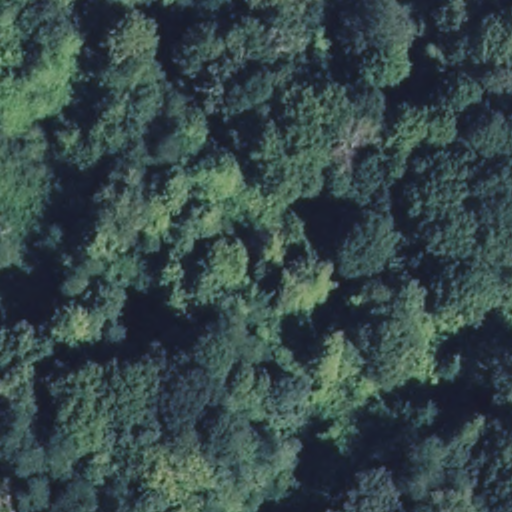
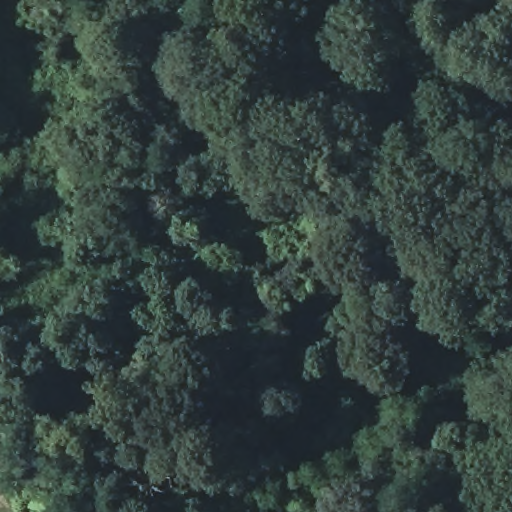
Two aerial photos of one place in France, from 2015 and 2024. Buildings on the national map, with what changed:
[]

